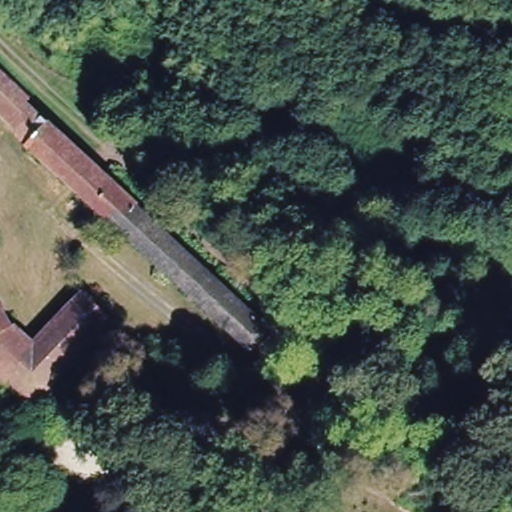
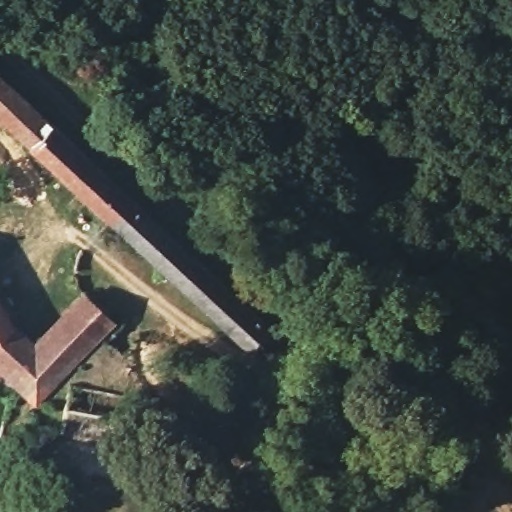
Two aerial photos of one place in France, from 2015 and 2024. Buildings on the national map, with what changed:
unchanged [(0,113),(0,64),(55,115),(31,142),(0,113)]
unchanged [(255,354),(177,282),(31,142),(55,115),(280,328),(255,354)]
unchanged [(27,343),(80,286),(110,315),(72,354),(75,358),(60,372),(27,343)]
unchanged [(0,377),(0,316),(5,325),(27,343),(60,372),(30,403),(0,377)]
unchanged [(124,391),(117,440),(52,430),(60,383),(124,391)]
unchanged [(448,512),(442,503),(460,489),(467,501),(453,512),(448,512)]

